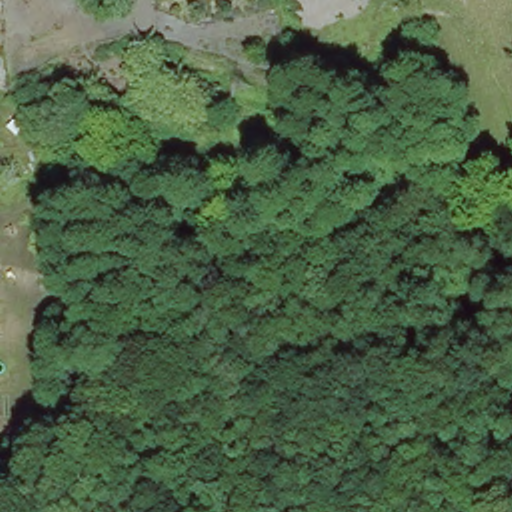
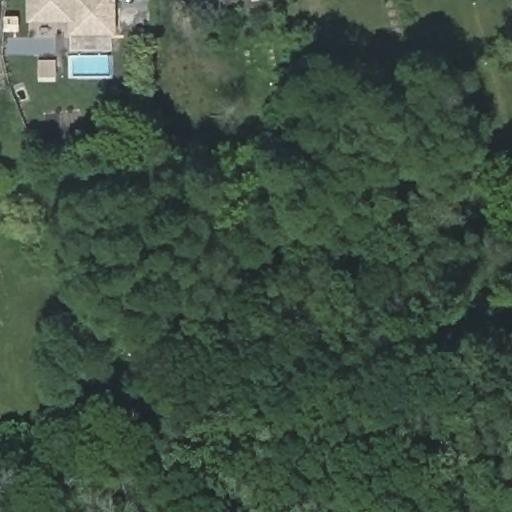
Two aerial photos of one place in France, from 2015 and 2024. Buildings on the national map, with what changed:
new [(112,35),(70,35),(70,22),(30,22),(29,0),(111,0),(112,35)]

